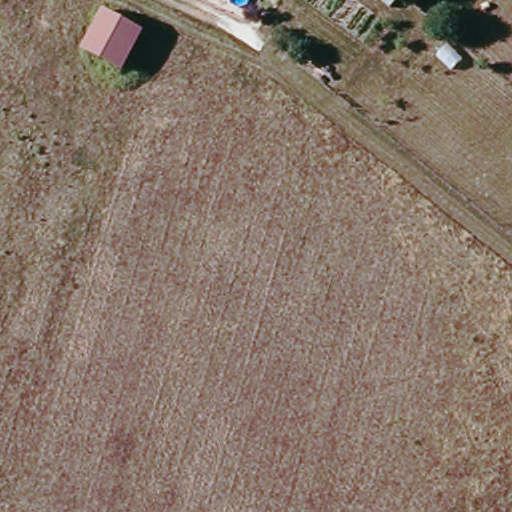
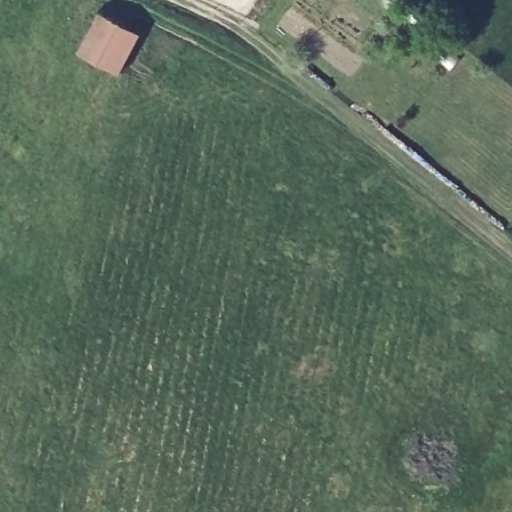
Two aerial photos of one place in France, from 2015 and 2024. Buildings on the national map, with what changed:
unchanged [(130,32),(111,65),(79,47),(98,13),(130,32)]

